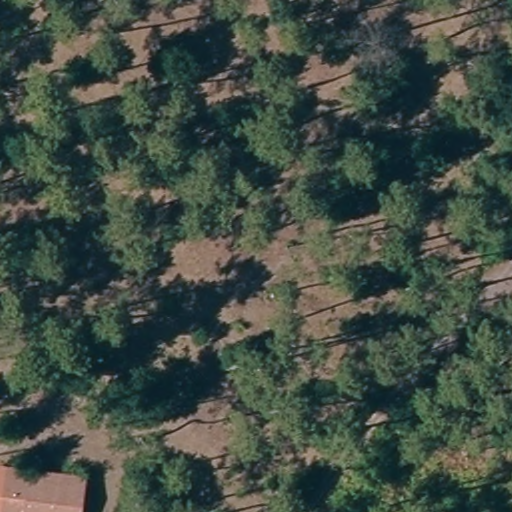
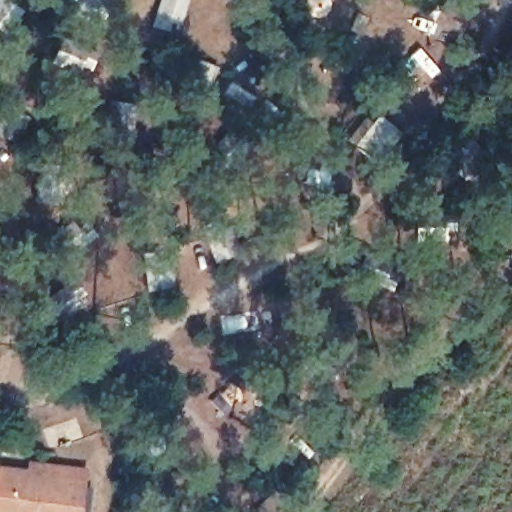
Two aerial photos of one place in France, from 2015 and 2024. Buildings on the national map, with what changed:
unchanged [(75,512),(0,512),(0,470),(80,483),(75,512)]

